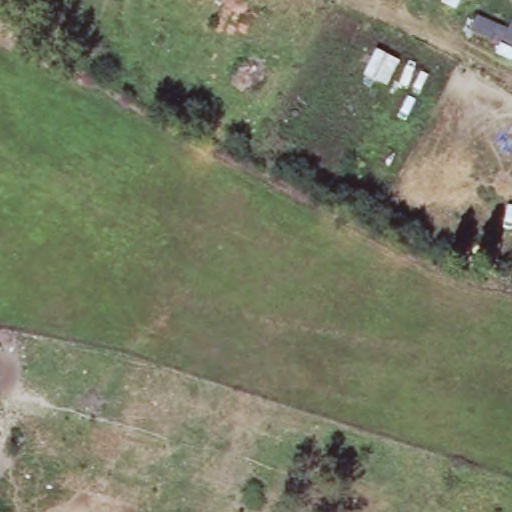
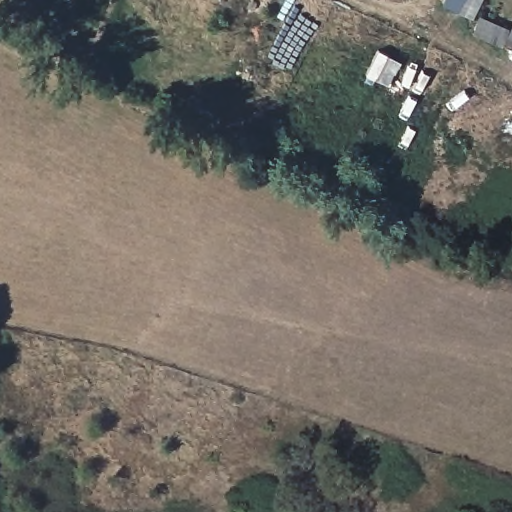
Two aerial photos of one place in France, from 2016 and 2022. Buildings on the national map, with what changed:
unchanged [(458,12),(441,4),(444,0),(464,0),(458,12)]
unchanged [(479,16),(510,28),(512,25),(512,46),(471,30),(479,16)]

